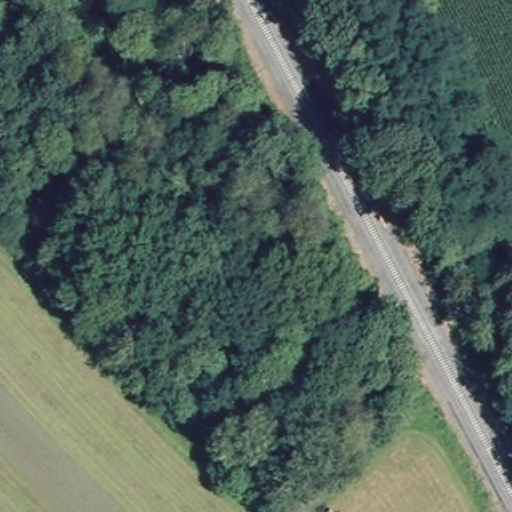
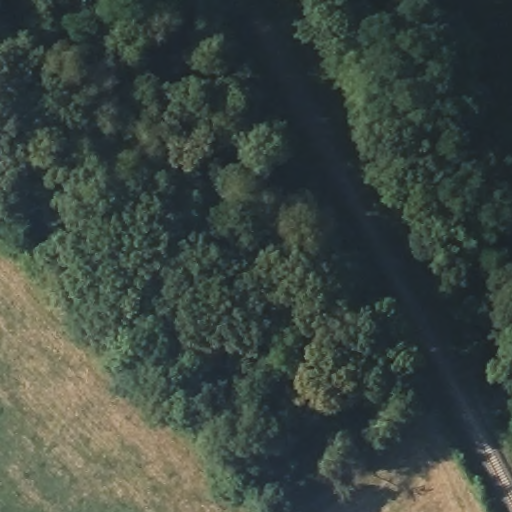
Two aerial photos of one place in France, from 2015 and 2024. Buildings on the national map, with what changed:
[]

